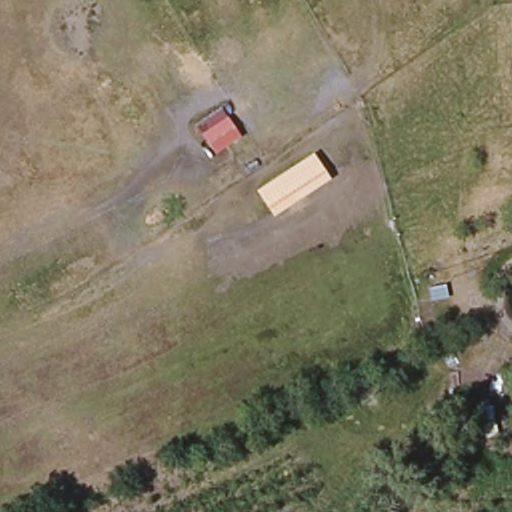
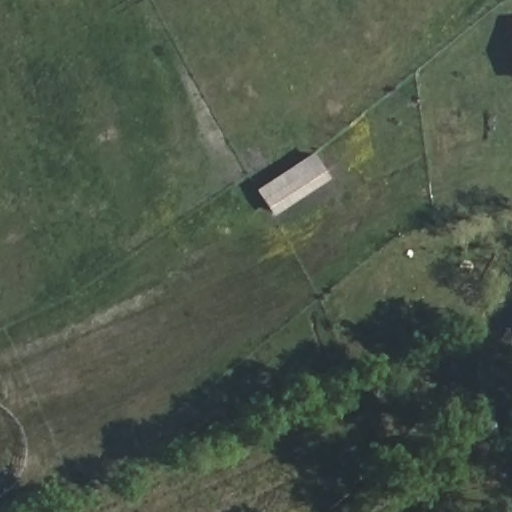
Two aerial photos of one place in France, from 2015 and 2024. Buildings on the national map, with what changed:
unchanged [(511,24),(512,24),(512,41),(511,24)]
unchanged [(273,216),(255,189),(312,153),(329,179),(273,216)]

